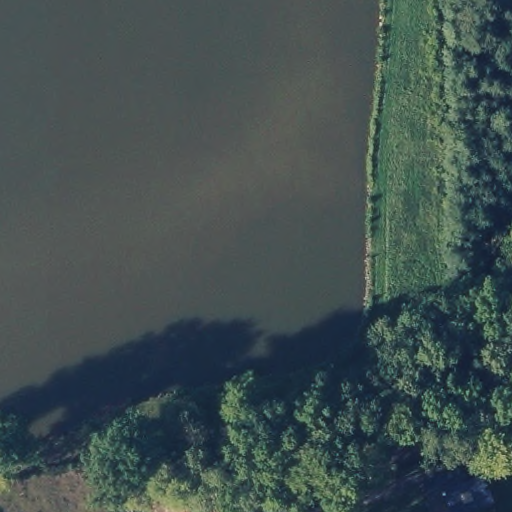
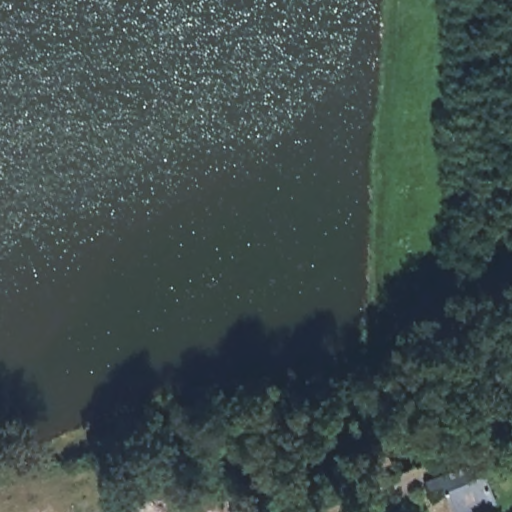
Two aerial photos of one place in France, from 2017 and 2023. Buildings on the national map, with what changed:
unchanged [(454,469),(469,465),(474,474),(480,472),(491,499),(457,512),(454,512),(438,471),(453,466),(454,469)]

